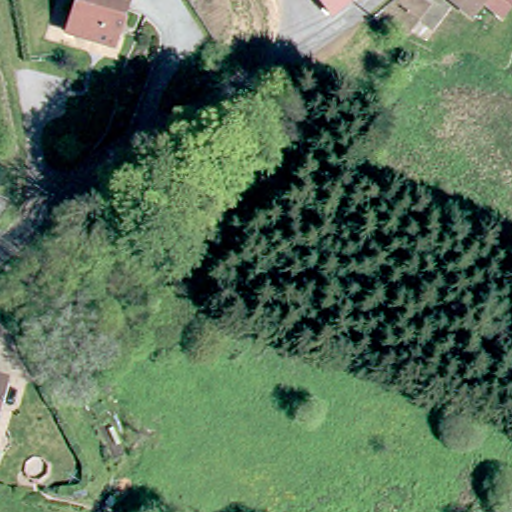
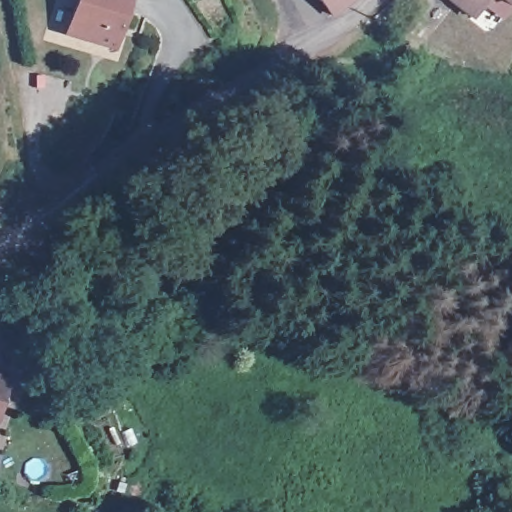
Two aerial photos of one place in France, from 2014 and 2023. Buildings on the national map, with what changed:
unchanged [(71,0),(119,0),(105,44),(61,29),(71,0)]
unchanged [(314,0),(351,0),(327,15),(314,0)]
unchanged [(445,0),(479,0),(465,18),(445,0)]
unchanged [(480,0),(512,0),(512,6),(502,18),(480,0)]

